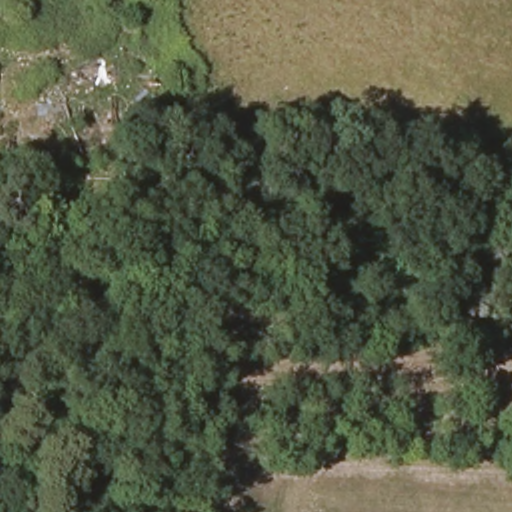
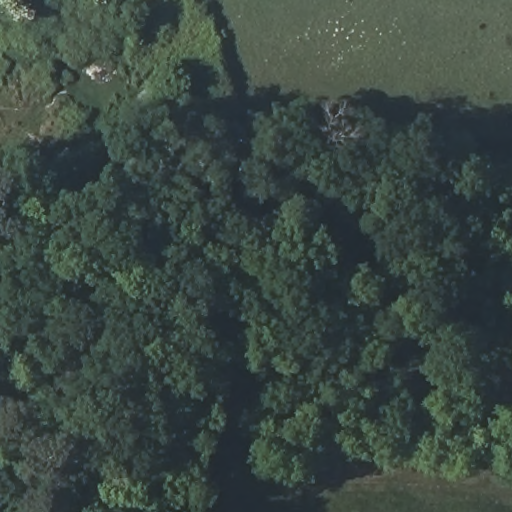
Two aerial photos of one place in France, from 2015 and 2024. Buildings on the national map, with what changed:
unchanged [(162,10),(161,44),(141,43),(141,9),(162,10)]

